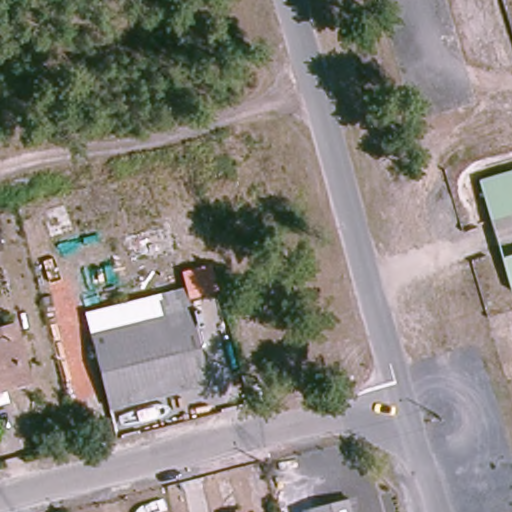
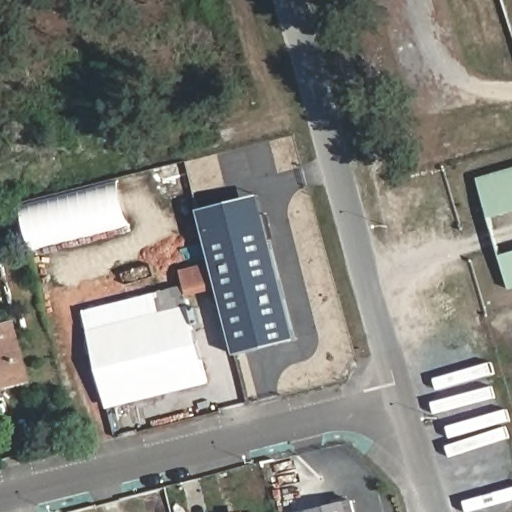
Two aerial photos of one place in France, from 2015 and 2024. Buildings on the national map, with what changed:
unchanged [(512,210),(485,218),(477,180),(512,170),(512,210)]
new [(119,179),(129,224),(32,248),(20,203),(119,179)]
new [(200,209),(260,194),(296,339),(236,353),(200,209)]
demolished [(167,222),(175,255),(128,266),(120,233),(167,222)]
new [(2,251),(0,252),(0,243),(2,251)]
unchanged [(512,290),(509,290),(497,257),(512,253),(512,290)]
new [(182,268),(209,262),(215,289),(188,295),(182,268)]
new [(150,298),(155,319),(89,336),(83,309),(182,285),(185,290),(150,298)]
unchanged [(155,319),(150,298),(185,290),(207,384),(106,407),(89,336),(155,319)]
unchanged [(0,391),(0,331),(11,328),(23,371),(26,384),(0,391)]
unchanged [(359,512),(317,512),(356,502),(359,512)]

